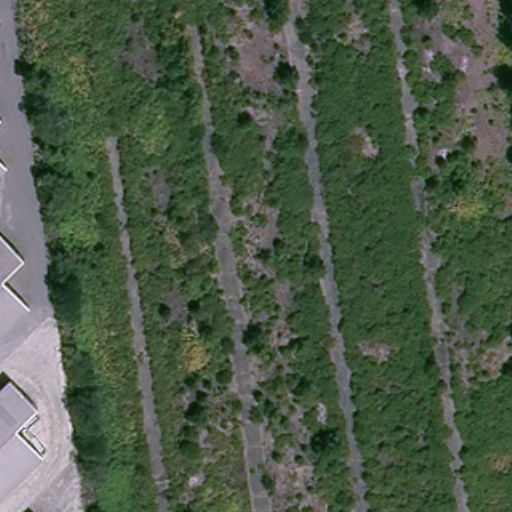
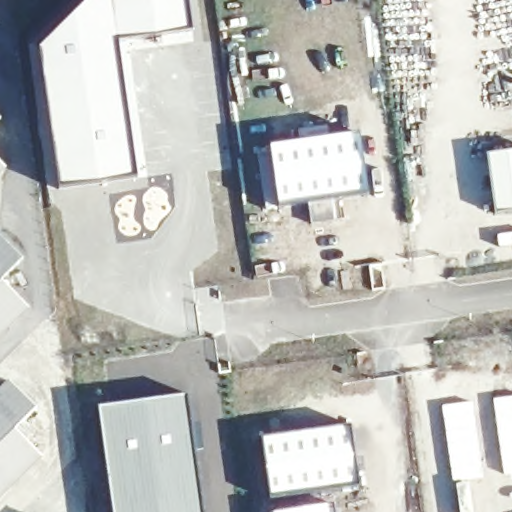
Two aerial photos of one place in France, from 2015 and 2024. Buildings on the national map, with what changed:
new [(85,0),(185,0),(189,31),(117,41),(135,176),(59,186),(36,48),(85,0)]
new [(310,225),(307,201),(276,205),(267,145),(301,139),(357,132),(365,192),(334,197),(337,221),(310,225)]
new [(512,210),(493,212),(485,153),(512,149),(512,210)]
unchanged [(2,170),(0,172),(0,167),(2,170)]
unchanged [(9,277),(36,304),(0,339),(0,234),(5,229),(31,256),(9,277)]
unchanged [(39,404),(17,425),(43,452),(0,494),(0,390),(13,377),(39,404)]
new [(203,512),(114,512),(100,407),(187,395),(203,512)]
new [(495,401),(512,399),(512,474),(504,475),(495,401)]
new [(443,406),(473,402),(483,477),(453,482),(443,406)]
new [(351,423),(358,483),(271,496),(262,437),(351,423)]
new [(332,512),(271,512),(331,503),(332,512)]

